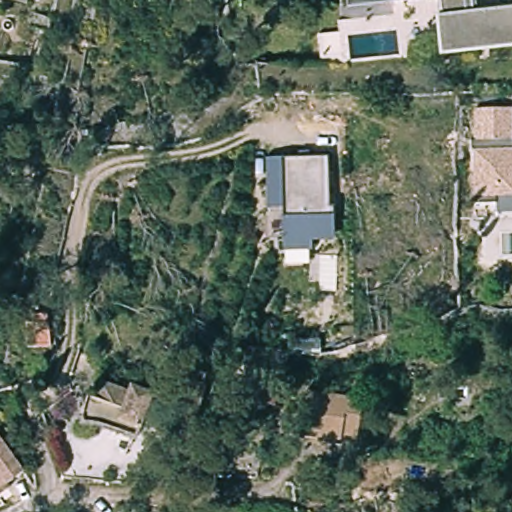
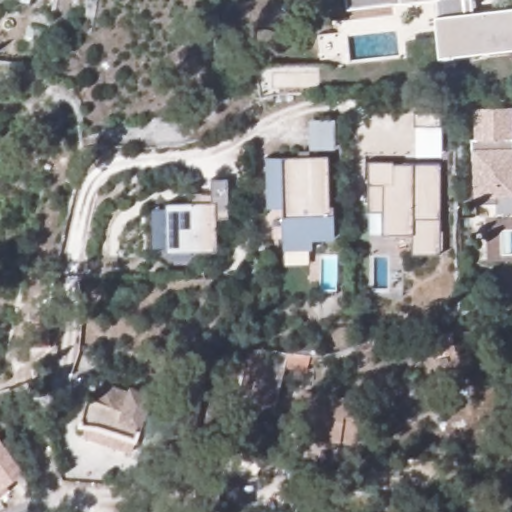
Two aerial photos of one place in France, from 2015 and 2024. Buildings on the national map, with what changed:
unchanged [(0,2),(0,0),(32,0),(29,10),(0,2)]
unchanged [(442,1),(350,10),(349,0),(471,0),(473,16),(512,11),(512,50),(447,56),(442,1)]
unchanged [(495,213),(495,197),(475,200),(470,110),(512,109),(512,213),(495,213)]
new [(334,122),(335,150),(310,151),(309,123),(334,122)]
unchanged [(331,159),(331,201),(322,201),(322,208),(313,208),(313,219),(300,219),(300,208),(285,208),(285,198),(269,198),(269,159),(331,159)]
new [(369,165),(390,165),(405,165),(442,166),(440,256),(413,256),(413,237),(383,236),(383,214),(368,214),(369,165)]
unchanged [(334,242),(312,242),(312,249),(282,247),(281,218),(280,210),(268,209),(269,198),(285,198),(285,208),(300,208),(300,219),(313,219),(313,208),(322,208),(322,201),(331,201),(334,242)]
new [(218,200),(219,250),(172,251),(167,251),(167,200),(171,200),(218,200)]
unchanged [(35,316),(49,317),(48,348),(25,348),(26,323),(34,323),(35,316)]
unchanged [(56,359),(57,351),(69,354),(68,361),(56,359)]
unchanged [(238,411),(242,397),(255,359),(276,361),(261,403),(256,416),(238,411)]
unchanged [(192,432),(171,425),(186,370),(204,375),(202,386),(206,387),(192,432)]
unchanged [(80,438),(88,412),(94,414),(101,395),(129,406),(130,403),(149,409),(136,455),(80,438)]
unchanged [(296,440),(302,396),(360,404),(354,449),(296,440)]
unchanged [(0,494),(0,439),(26,477),(0,494)]
unchanged [(0,501),(0,499),(1,500),(0,501)]

